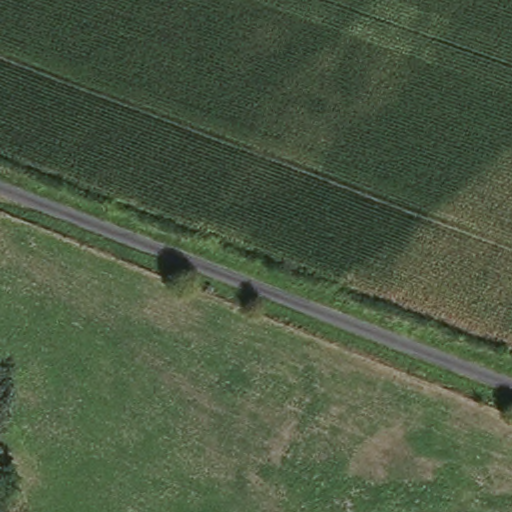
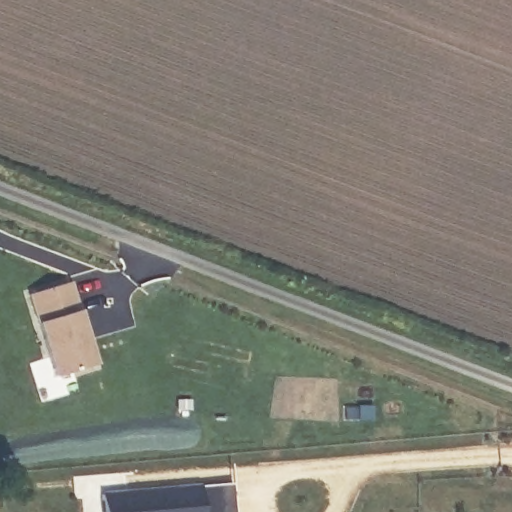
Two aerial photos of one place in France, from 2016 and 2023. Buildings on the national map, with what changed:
new [(74,280),(97,365),(56,377),(30,294),(74,280)]
new [(203,487),(204,512),(103,512),(101,494),(203,487)]

